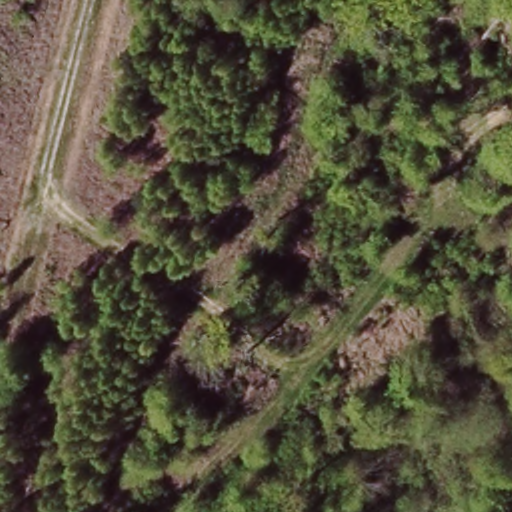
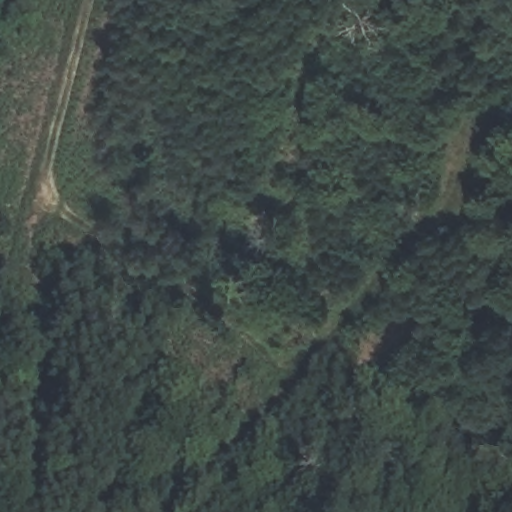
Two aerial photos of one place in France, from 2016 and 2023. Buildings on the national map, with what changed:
[]

